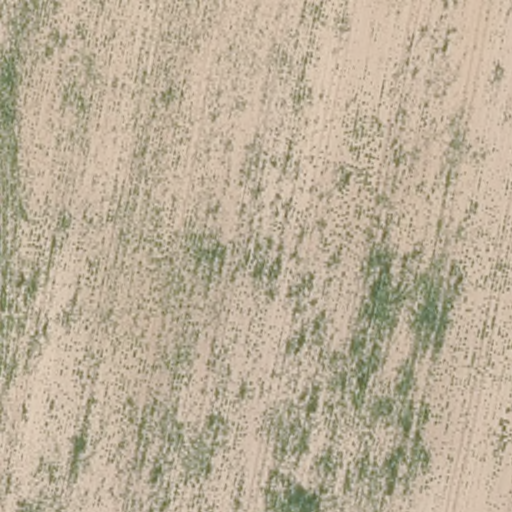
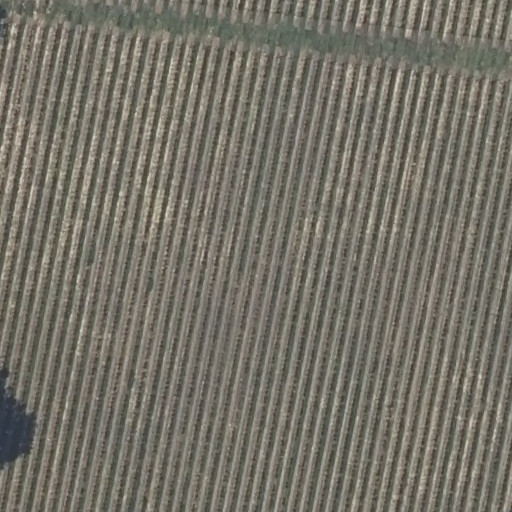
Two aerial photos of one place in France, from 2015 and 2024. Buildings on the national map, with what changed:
[]

